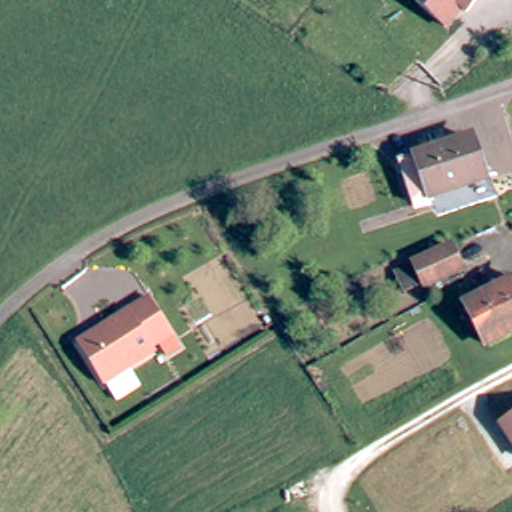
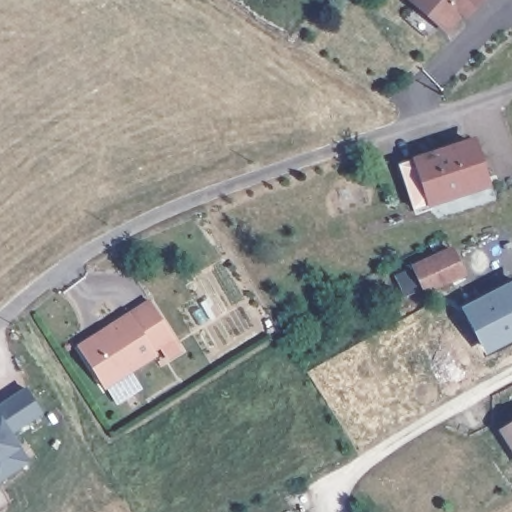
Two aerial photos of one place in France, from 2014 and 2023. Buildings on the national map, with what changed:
unchanged [(461,6),(445,25),(414,0),(472,0),(470,3),(464,10),(461,6)]
unchanged [(502,183),(430,207),(416,164),(487,140),(502,183)]
unchanged [(431,267),(428,260),(466,245),(476,271),(438,287),(436,282),(418,291),(411,272),(431,267)]
unchanged [(512,291),(512,343),(496,351),(476,311),(512,291)]
unchanged [(171,338),(151,351),(153,355),(102,388),(78,351),(76,347),(101,331),(147,301),(171,338)]
new [(24,389),(39,413),(8,434),(0,421),(0,405),(24,389)]
new [(8,434),(26,462),(0,480),(0,421),(8,434)]
unchanged [(512,424),(512,450),(500,431),(512,424)]

